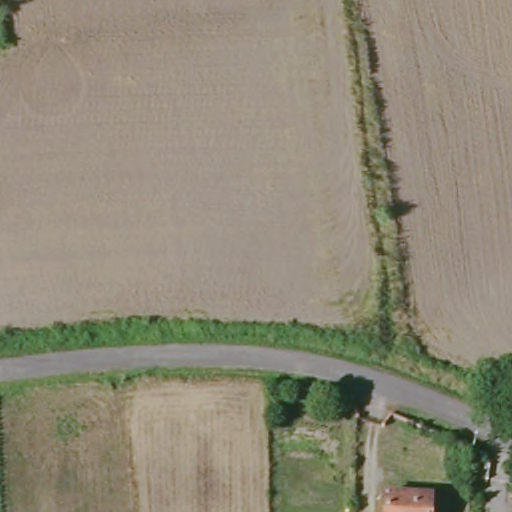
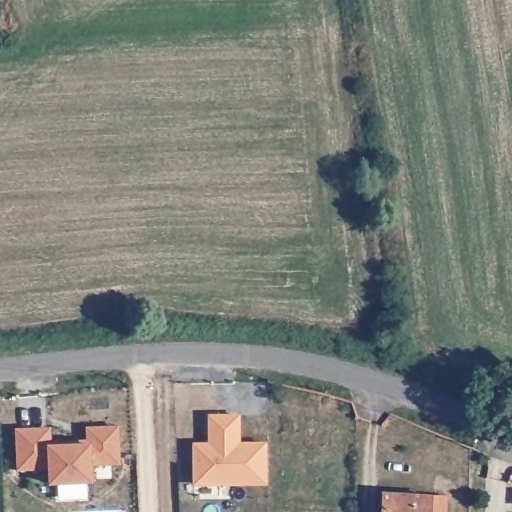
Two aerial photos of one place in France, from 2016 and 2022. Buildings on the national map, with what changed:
new [(210,445),(209,417),(237,417),(238,445),(266,445),(266,483),(229,483),(230,498),(195,499),(194,445),(210,445)]
new [(121,464),(92,466),(93,484),(50,486),(49,470),(16,470),(15,429),(52,428),(53,444),(87,444),(86,427),(119,425),(121,464)]
new [(70,439),(86,438),(86,441),(70,442),(70,439)]
unchanged [(442,492),(442,512),(376,512),(377,492),(442,492)]

